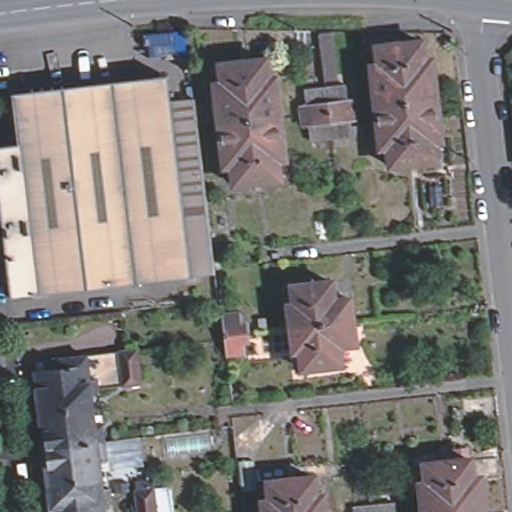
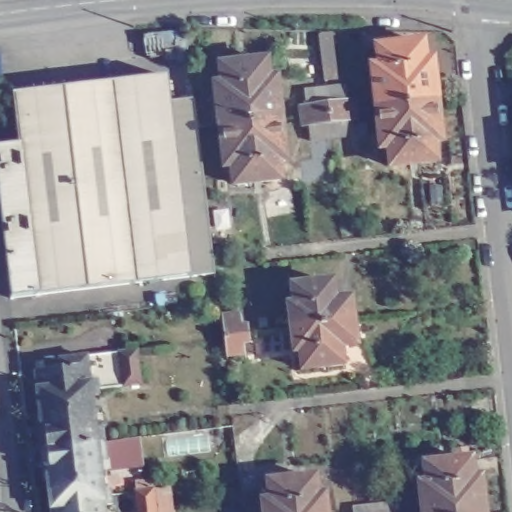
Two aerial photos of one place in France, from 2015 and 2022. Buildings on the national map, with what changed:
unchanged [(366,67),(373,66),(371,46),(417,42),(419,60),(427,60),(432,99),(369,106),(366,67)]
unchanged [(211,89),(218,88),(216,69),(261,64),(263,83),(271,82),(276,121),(215,128),(211,89)]
unchanged [(168,86),(169,108),(197,105),(215,278),(189,285),(141,291),(120,91),(168,86)]
unchanged [(303,129),(303,127),(301,119),(301,112),(308,111),(306,94),(326,92),(346,90),(348,107),(353,106),(354,113),(354,120),(357,139),(331,142),(311,144),(310,128),(303,129)]
unchanged [(23,152),(18,103),(91,95),(120,91),(141,291),(40,302),(23,152)]
unchanged [(432,99),(437,140),(429,141),(431,160),(386,165),(384,146),(374,147),(369,106),(432,99)]
unchanged [(276,121),(281,163),(273,163),(275,182),(229,187),(228,168),(219,169),(215,128),(276,121)]
unchanged [(23,152),(40,302),(14,305),(0,177),(0,154),(23,152)]
unchanged [(291,331),(289,308),(296,307),(294,289),(331,284),(334,303),(349,301),(352,323),(291,331)]
unchanged [(223,318),(239,315),(241,328),(248,327),(250,342),(250,344),(243,345),(244,356),(228,358),(226,345),(223,318)]
unchanged [(355,347),(339,349),(342,368),(304,372),(301,354),(294,355),(291,331),(352,323),(355,347)]
unchanged [(136,360),(138,395),(121,397),(96,399),(95,388),(88,389),(84,366),(118,362),(136,360)]
unchanged [(34,382),(59,379),(58,369),(84,366),(88,389),(95,388),(96,399),(97,405),(90,406),(91,417),(39,423),(34,382)]
unchanged [(43,457),(41,439),(38,439),(36,426),(39,423),(91,417),(93,434),(100,433),(103,449),(43,457)]
unchanged [(105,470),(98,471),(100,487),(48,494),(44,490),(43,477),(45,473),(43,457),(103,449),(105,470)]
unchanged [(429,482),(426,463),(472,458),(474,476),(482,475),(486,512),(424,512),(421,483),(429,482)]
unchanged [(266,505),(264,487),(309,482),(311,500),(319,499),(321,512),(259,512),(259,506),(266,505)]
unchanged [(108,499),(110,512),(50,512),(48,494),(100,487),(101,499),(108,499)]
unchanged [(142,512),(139,491),(156,489),(159,512),(142,512)]
unchanged [(394,507),(394,512),(354,512),(374,509),(394,507)]

